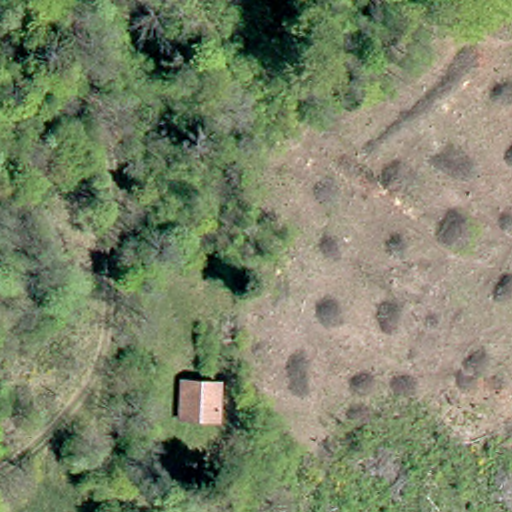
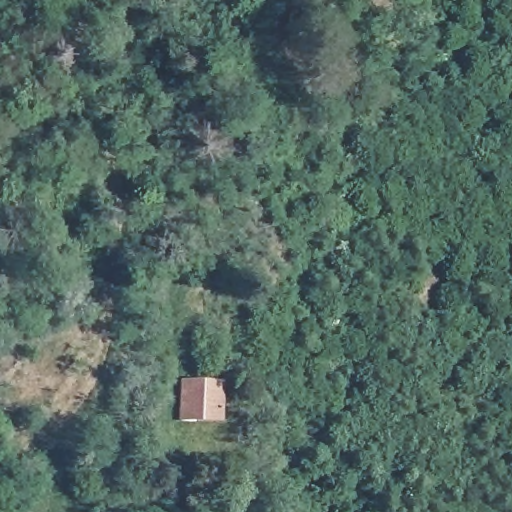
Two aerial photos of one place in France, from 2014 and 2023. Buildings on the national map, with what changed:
unchanged [(221,431),(185,428),(187,390),(224,393),(221,431)]

